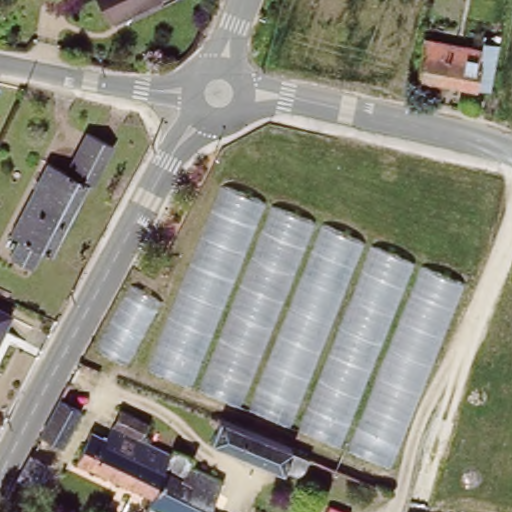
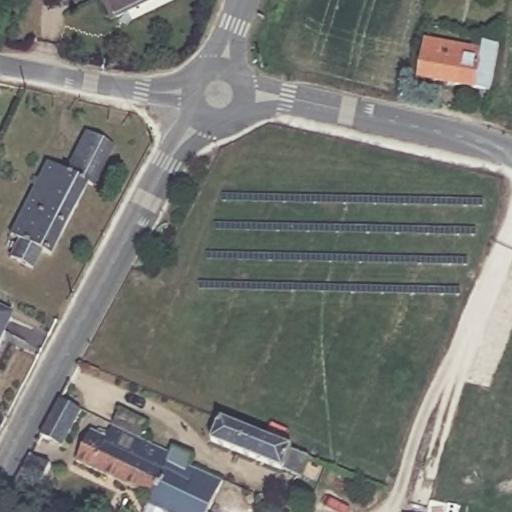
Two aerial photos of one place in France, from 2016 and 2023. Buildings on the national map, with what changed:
unchanged [(112,25),(99,0),(162,0),(112,25)]
unchanged [(421,81),(429,42),(486,54),(487,44),(503,47),(493,95),(421,81)]
unchanged [(87,133),(113,145),(93,185),(89,183),(68,172),(87,133)]
unchanged [(10,259),(16,247),(20,239),(11,236),(47,162),(68,172),(89,183),(52,256),(41,251),(37,258),(31,269),(10,259)]
demolished [(386,464),(147,372),(223,186),(466,285),(386,464)]
unchanged [(0,337),(0,311),(10,316),(0,337)]
unchanged [(42,441),(61,406),(82,418),(63,452),(42,441)]
unchanged [(118,412),(145,426),(138,439),(111,425),(118,412)]
unchanged [(306,462),(299,479),(281,471),(279,473),(210,441),(218,420),(289,451),(287,455),(306,462)]
unchanged [(149,499),(73,462),(87,434),(103,441),(109,429),(157,452),(168,458),(160,475),(149,499)]
unchanged [(160,475),(168,458),(157,452),(166,434),(177,439),(173,450),(192,459),(187,467),(218,482),(210,497),(160,475)]
unchanged [(31,456),(52,467),(40,490),(18,480),(31,456)]
unchanged [(149,499),(160,475),(210,497),(208,503),(204,512),(143,512),(147,503),(149,499)]
unchanged [(211,505),(222,512),(204,512),(208,503),(211,505)]

